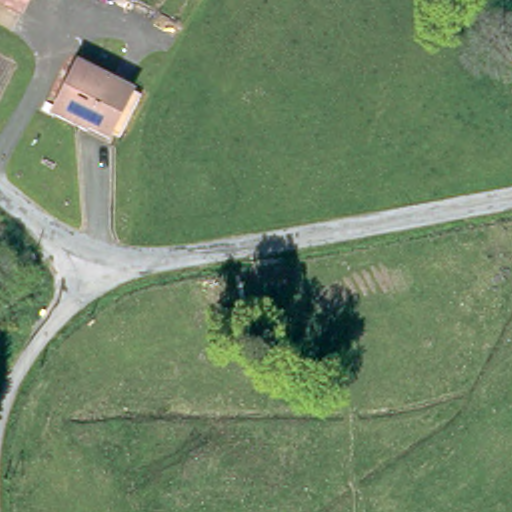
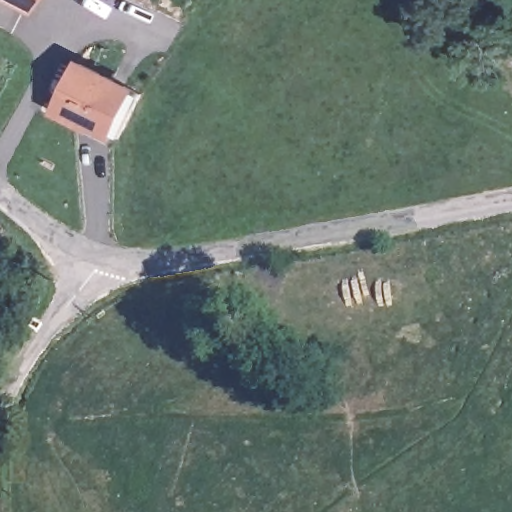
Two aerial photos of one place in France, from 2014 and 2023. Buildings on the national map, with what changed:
unchanged [(0,12),(0,0),(27,0),(16,20),(0,12)]
unchanged [(86,124),(52,106),(74,62),(113,82),(86,124)]
unchanged [(134,93),(111,137),(86,124),(113,82),(134,93)]

